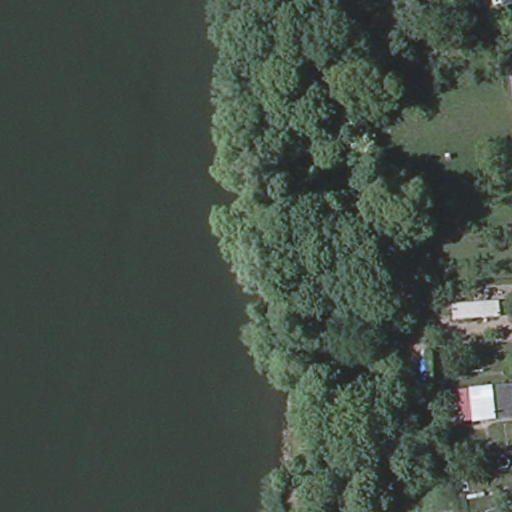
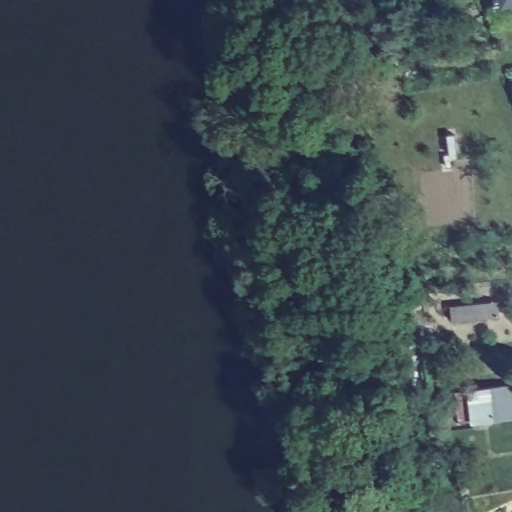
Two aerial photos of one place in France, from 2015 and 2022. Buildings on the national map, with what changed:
unchanged [(456,313),(502,309),(503,323),(487,325),(487,323),(457,326),(456,313)]
unchanged [(460,397),(470,396),(490,393),(512,390),(512,422),(495,425),(475,427),(465,429),(460,397)]

